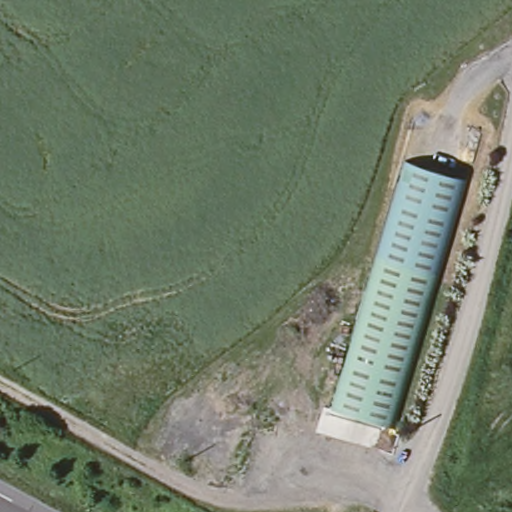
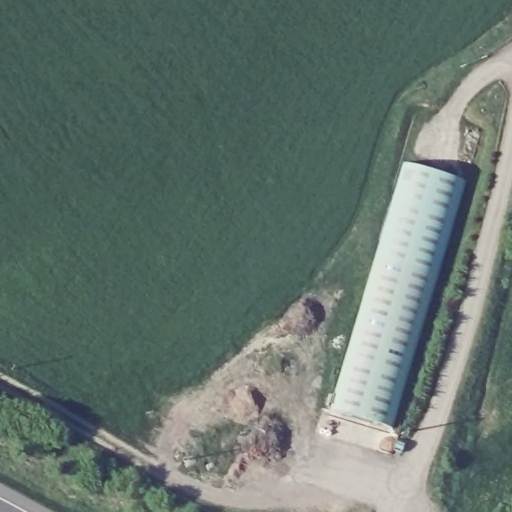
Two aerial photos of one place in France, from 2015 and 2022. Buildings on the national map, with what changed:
unchanged [(401,161),(460,177),(388,426),(327,411),(401,161)]

